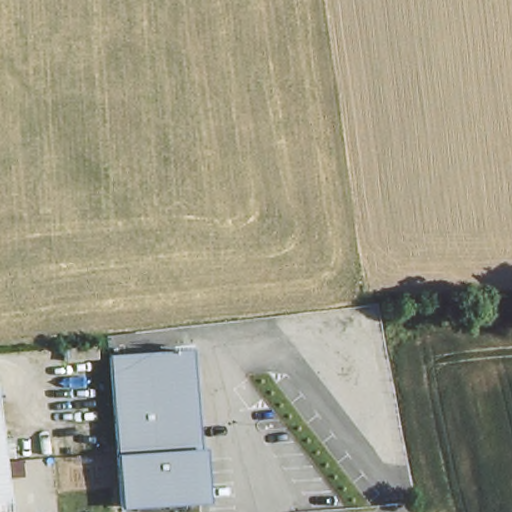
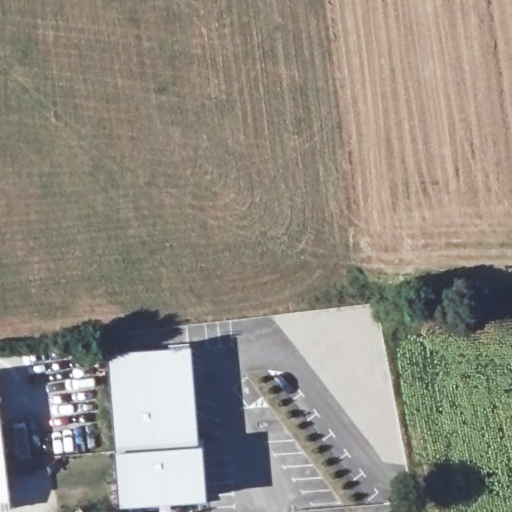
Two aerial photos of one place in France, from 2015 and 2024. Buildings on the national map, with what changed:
unchanged [(188,347),(202,497),(123,504),(109,355),(188,347)]
unchanged [(0,508),(0,432),(6,497),(7,507),(0,508)]

